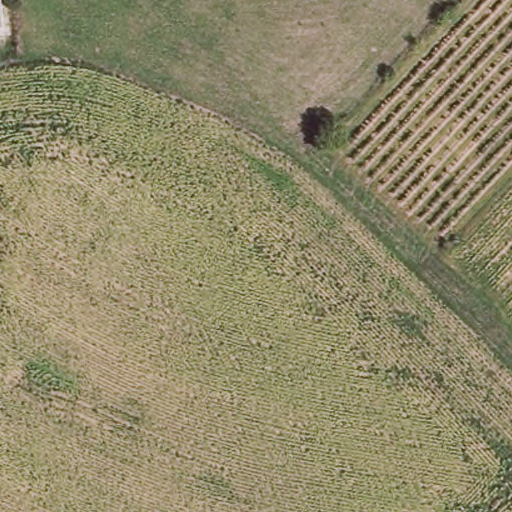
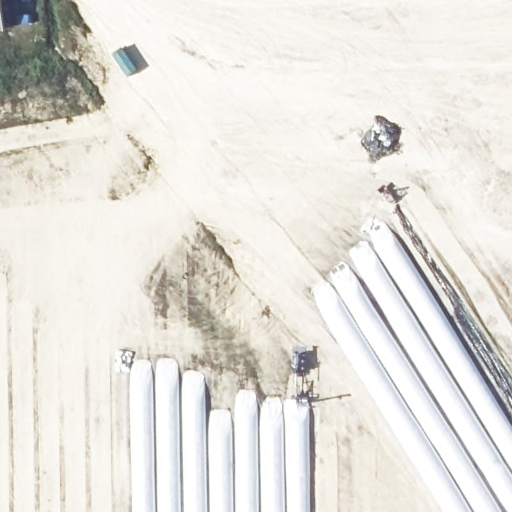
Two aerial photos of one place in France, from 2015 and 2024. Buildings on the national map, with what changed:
unchanged [(9,29),(0,30),(0,0),(6,0),(9,29)]
new [(368,293),(373,290),(359,268),(365,264),(363,261),(368,257),(363,250),(354,257),(350,251),(372,236),(379,245),(388,239),(386,235),(391,232),(440,306),(503,409),(512,423),(512,480),(507,472),(503,476),(491,491),(497,501),(481,512),(473,512),(409,410),(343,301),(326,278),(347,263),(368,293)]
new [(343,301),(409,410),(473,512),(442,512),(434,499),(332,335),(310,288),(326,278),(343,301)]
new [(133,375),(134,390),(149,390),(149,363),(179,362),(179,370),(205,372),(208,408),(233,408),(235,390),(250,391),(274,396),(310,398),(310,498),(310,512),(131,512),(128,398),(129,375),(133,375)]

